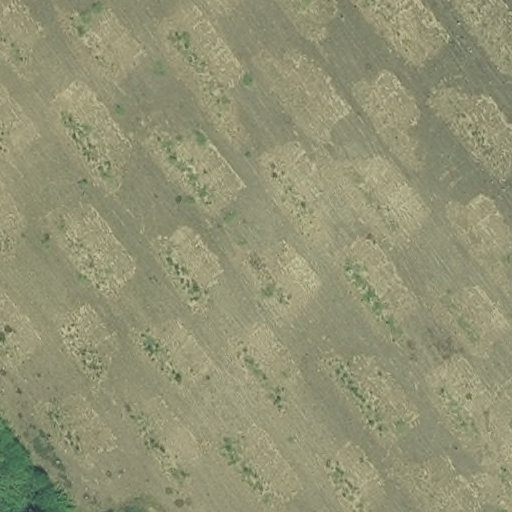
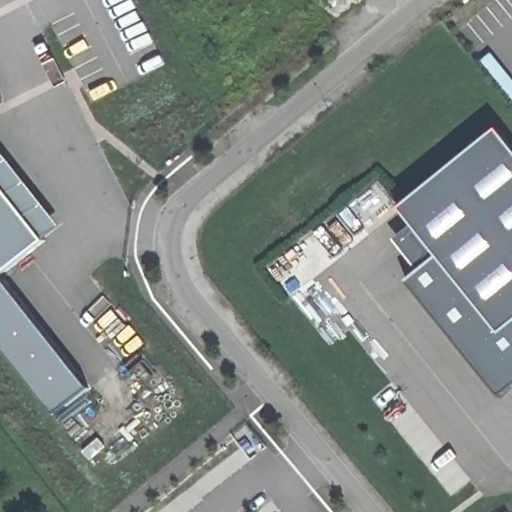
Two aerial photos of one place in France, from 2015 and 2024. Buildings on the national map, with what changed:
new [(413,225),(400,208),(498,128),(512,145),(512,390),(502,398),(407,281),(420,271),(395,240),(413,225)]
new [(45,239),(45,240),(1,275),(90,388),(55,415),(0,345),(0,149),(62,226),(45,239)]

